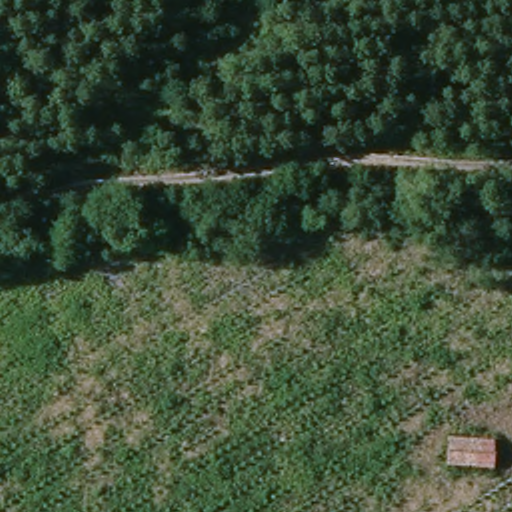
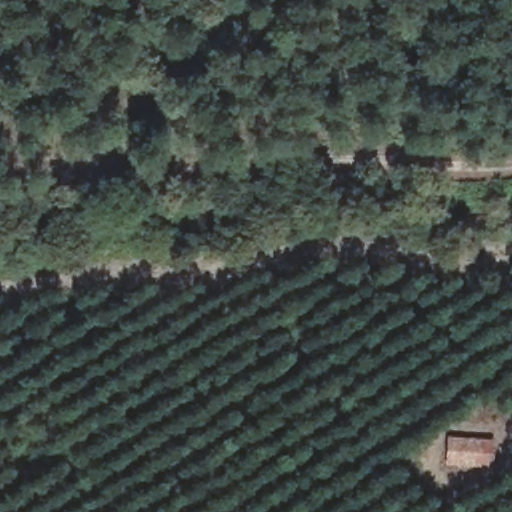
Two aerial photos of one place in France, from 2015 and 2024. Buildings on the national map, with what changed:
unchanged [(491,445),(490,468),(448,467),(449,445),(491,445)]

